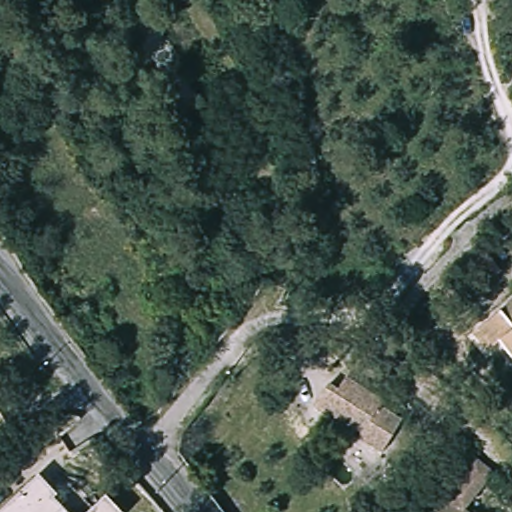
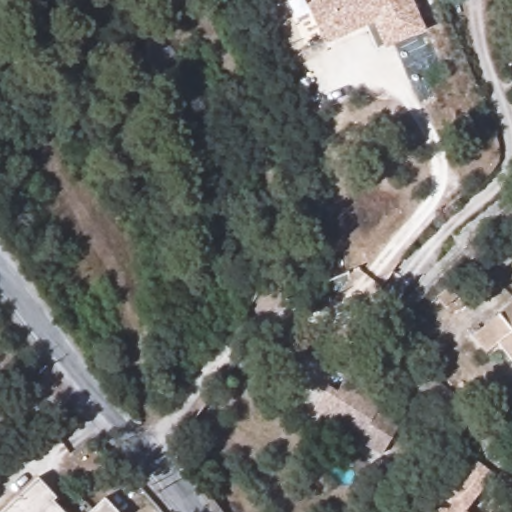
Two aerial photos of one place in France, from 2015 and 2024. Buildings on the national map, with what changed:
new [(317,0),(412,0),(426,30),(385,49),(384,48),(376,52),(365,27),(323,45),(306,5),(317,0)]
unchanged [(467,273),(490,256),(504,274),(482,291),(467,273)]
unchanged [(491,359),(474,339),(512,307),(512,358),(504,348),(491,359)]
unchanged [(390,403),(387,409),(408,423),(385,456),(364,442),(370,433),(359,424),(352,433),(319,410),(335,387),(343,393),(354,378),(390,403)]
unchanged [(496,477),(470,512),(439,512),(478,463),(496,477)]
unchanged [(58,496),(55,499),(67,512),(0,512),(0,511),(40,476),(58,496)]
unchanged [(120,512),(90,512),(106,497),(120,512)]

